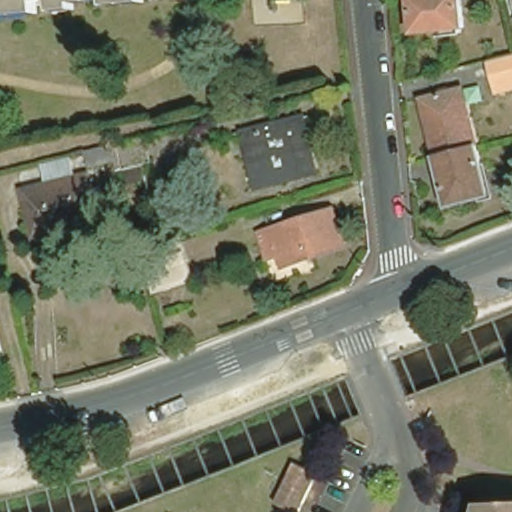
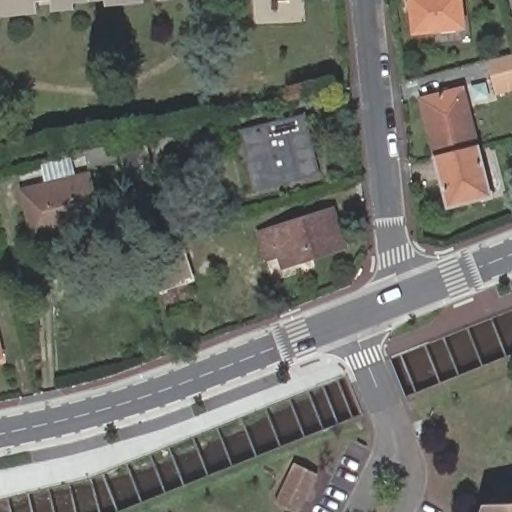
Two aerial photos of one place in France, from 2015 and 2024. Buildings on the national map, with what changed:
unchanged [(0,13),(0,0),(131,0),(0,13)]
unchanged [(463,28),(413,33),(410,0),(460,0),(463,28)]
unchanged [(512,90),(491,96),(482,62),(512,55),(512,90)]
unchanged [(418,102),(460,92),(475,148),(432,158),(418,102)]
unchanged [(239,134),(249,131),(300,118),(313,173),(262,186),(252,188),(239,134)]
unchanged [(155,166),(127,173),(120,143),(148,136),(155,166)]
unchanged [(91,166),(88,153),(118,146),(121,160),(91,166)]
unchanged [(475,148),(489,199),(445,210),(432,158),(475,148)]
unchanged [(68,230),(37,238),(26,191),(50,186),(45,164),(73,157),(78,179),(93,176),(102,216),(104,221),(68,230)]
unchanged [(283,268),(279,256),(266,260),(257,234),(332,211),(345,248),(283,268)]
unchanged [(192,279),(151,292),(141,250),(179,238),(192,279)]
unchanged [(1,358),(0,359),(0,352),(1,358)]
unchanged [(321,479),(306,512),(285,512),(278,508),(297,468),(321,479)]
unchanged [(481,503),(512,502),(512,512),(473,512),(475,504),(481,503)]

